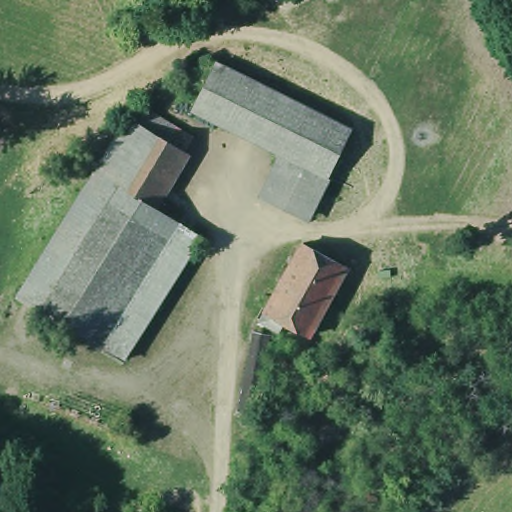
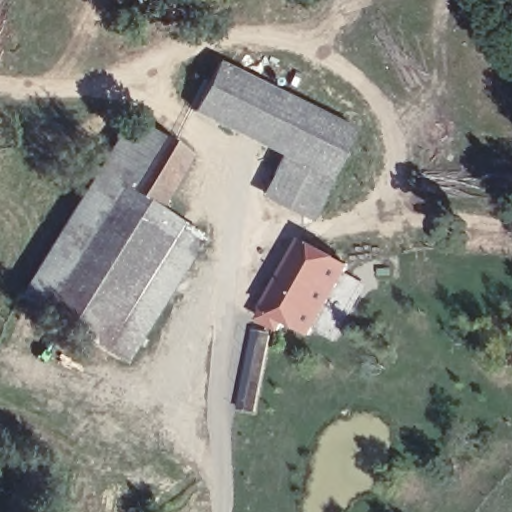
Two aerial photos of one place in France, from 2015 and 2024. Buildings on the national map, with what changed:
unchanged [(352,123),(310,211),(264,188),(282,149),(193,105),(217,56),(352,123)]
unchanged [(143,106),(197,140),(155,207),(101,173),(143,106)]
unchanged [(155,207),(204,236),(127,360),(24,295),(101,173),(155,207)]
unchanged [(304,238),(348,262),(310,330),(285,316),(280,326),(260,315),(304,238)]
unchanged [(239,409),(254,333),(270,337),(255,412),(239,409)]

